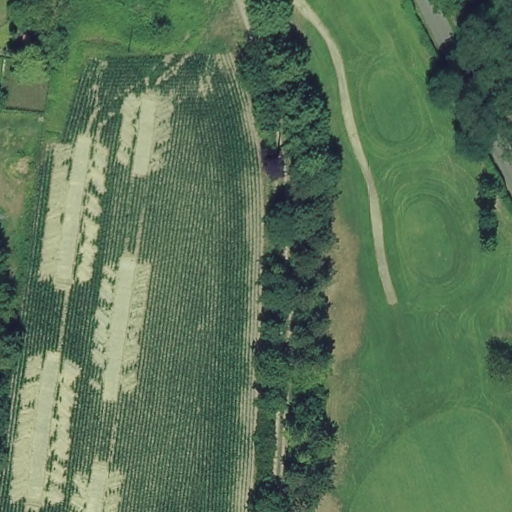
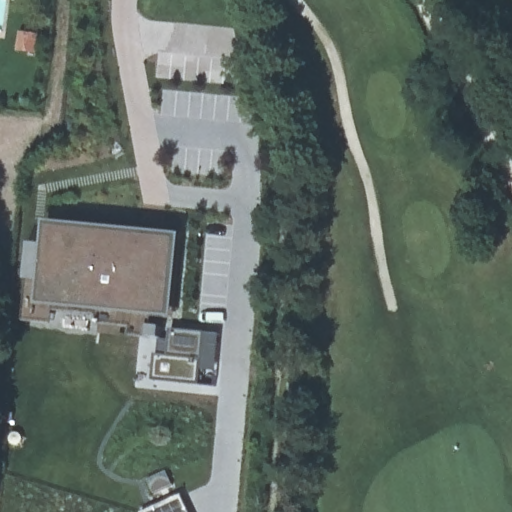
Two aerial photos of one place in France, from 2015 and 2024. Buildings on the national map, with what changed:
new [(177,323),(38,314),(43,224),(179,235),(177,323)]
new [(222,336),(216,386),(154,380),(157,355),(168,357),(168,332),(222,336)]
new [(189,512),(151,512),(181,493),(189,512)]

